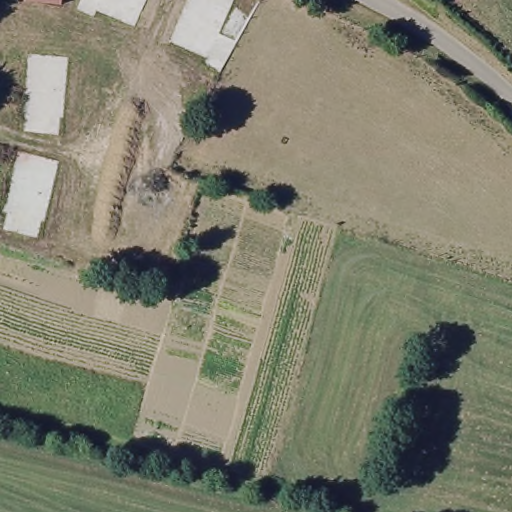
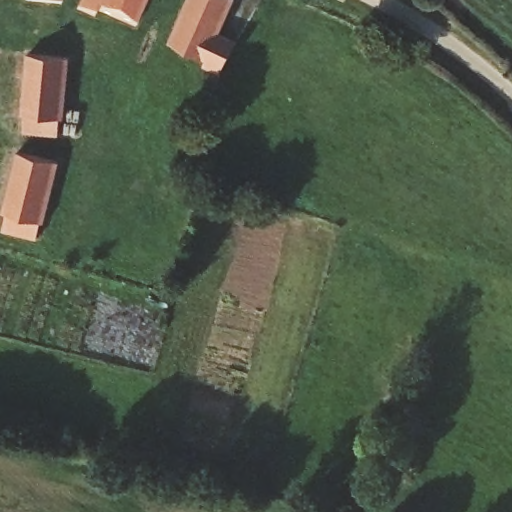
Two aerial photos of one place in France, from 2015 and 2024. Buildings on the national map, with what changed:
unchanged [(22,6),(23,0),(59,0),(57,13),(22,6)]
new [(77,9),(81,0),(148,0),(136,28),(97,10),(94,16),(77,9)]
new [(235,0),(222,31),(238,40),(221,73),(202,64),(199,56),(169,41),(187,0),(235,0)]
new [(59,135),(23,132),(28,54),(65,57),(59,135)]
new [(38,239),(2,230),(25,153),(57,161),(38,239)]

